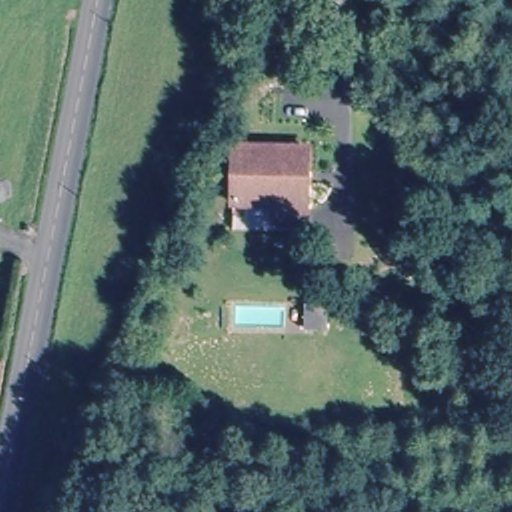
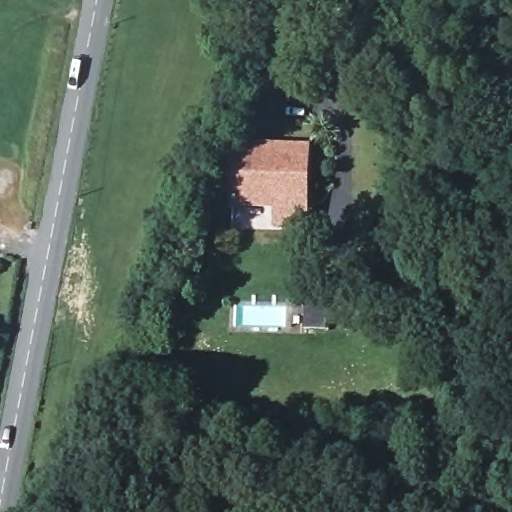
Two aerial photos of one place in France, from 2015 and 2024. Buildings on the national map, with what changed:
unchanged [(241,234),(250,143),(303,149),(295,239),(260,235),(241,234)]

